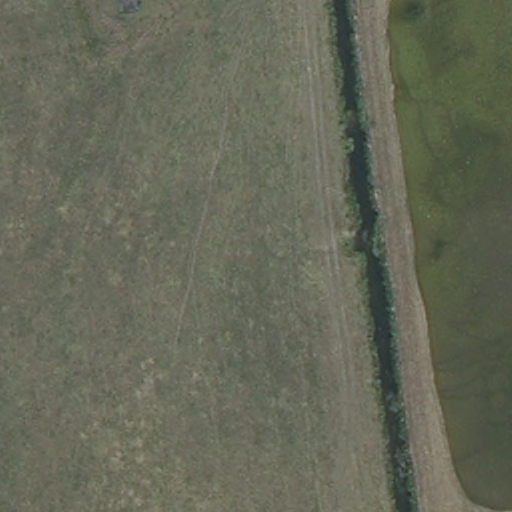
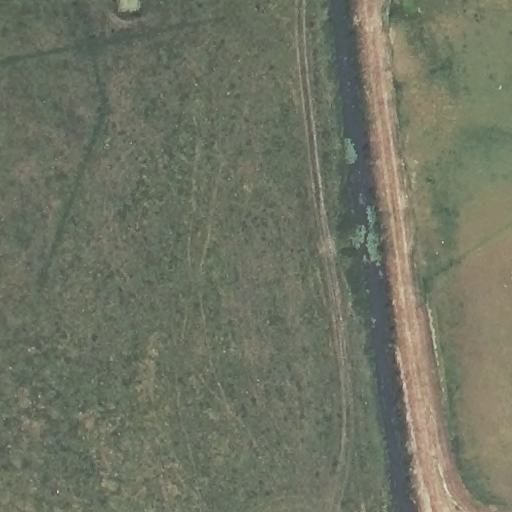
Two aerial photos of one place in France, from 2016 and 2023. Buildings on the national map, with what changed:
[]

